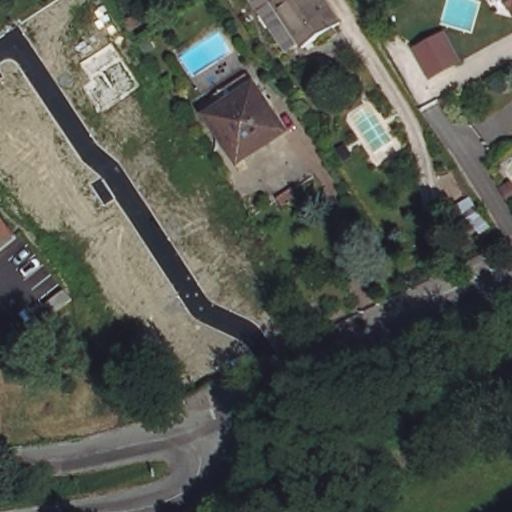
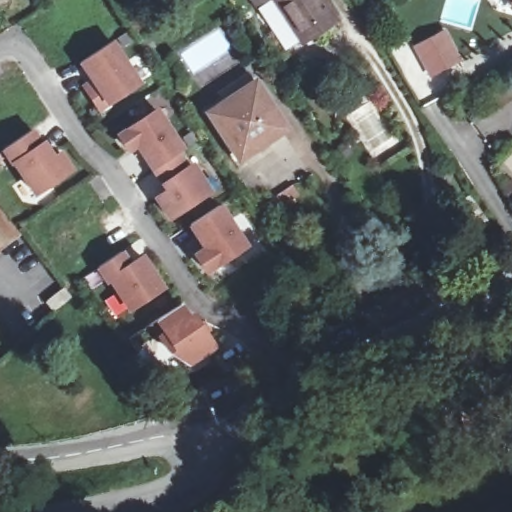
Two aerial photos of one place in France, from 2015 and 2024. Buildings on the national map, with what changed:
unchanged [(255,0),(326,0),(340,20),(304,44),(302,41),(287,50),(260,8),(255,0)]
unchanged [(511,0),(512,0),(512,2),(511,0)]
unchanged [(444,33),(460,61),(431,76),(416,48),(444,33)]
new [(89,81),(79,64),(113,40),(142,84),(107,107),(99,114),(80,85),(89,81)]
unchanged [(240,159),(206,106),(223,94),(220,90),(249,71),(255,83),(286,129),(240,159)]
new [(127,154),(115,134),(157,108),(184,149),(179,153),(187,164),(192,161),(212,194),(168,222),(153,197),(162,190),(158,184),(151,172),(136,149),(127,154)]
new [(10,166),(0,150),(32,129),(40,142),(45,139),(54,154),(60,150),(73,170),(34,197),(14,164),(10,166)]
unchanged [(511,185),(512,187),(512,202),(509,204),(500,191),(511,185)]
unchanged [(463,227),(456,216),(477,202),(492,224),(480,231),(474,220),(463,227)]
new [(201,248),(187,227),(222,204),(250,247),(206,277),(191,254),(201,248)]
unchanged [(0,238),(0,218),(10,230),(0,238)]
new [(130,262),(144,254),(165,289),(127,313),(108,284),(106,285),(95,269),(123,250),(130,262)]
unchanged [(55,312),(47,302),(64,289),(72,299),(55,312)]
new [(182,304),(190,314),(194,313),(202,324),(205,322),(213,333),(210,334),(219,348),(190,367),(169,354),(156,335),(162,332),(155,322),(182,304)]

